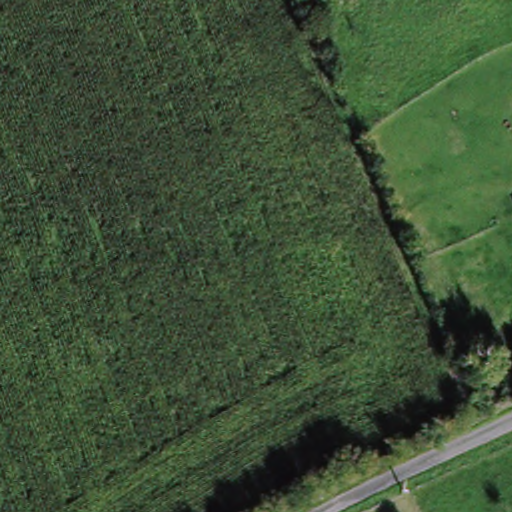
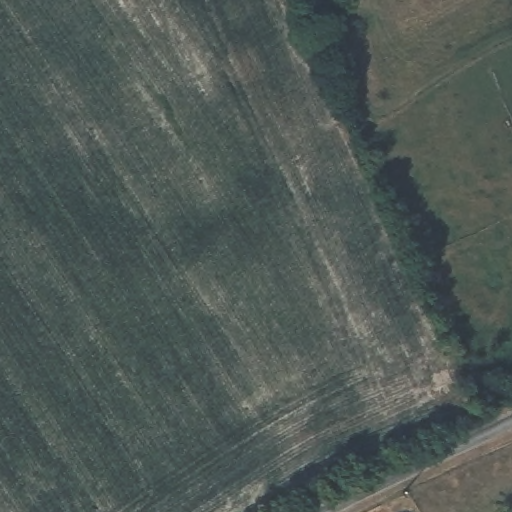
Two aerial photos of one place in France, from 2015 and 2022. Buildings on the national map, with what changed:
[]

